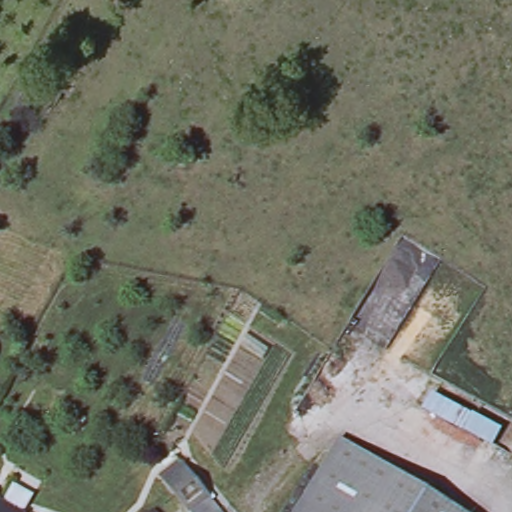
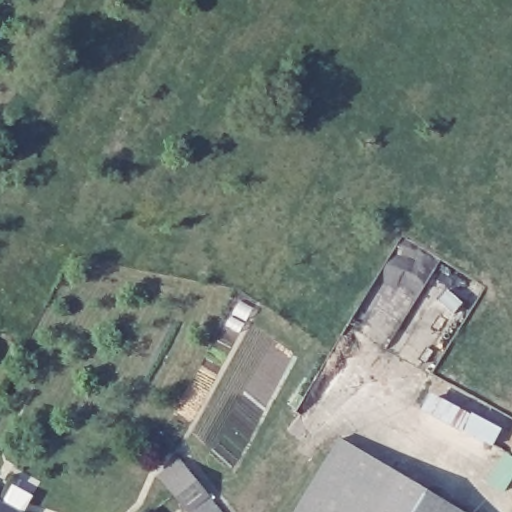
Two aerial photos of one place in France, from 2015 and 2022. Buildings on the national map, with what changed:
unchanged [(421,488),(406,512),(301,512),(339,442),(421,488)]
unchanged [(189,468),(208,490),(217,501),(205,512),(196,512),(196,511),(172,482),(189,468)]
unchanged [(462,512),(406,512),(421,488),(462,512)]
unchanged [(0,512),(0,502),(19,512),(0,512)]
unchanged [(151,512),(142,512),(147,507),(151,512)]

